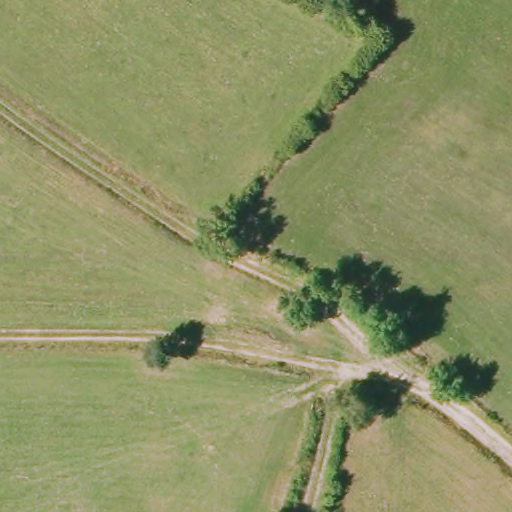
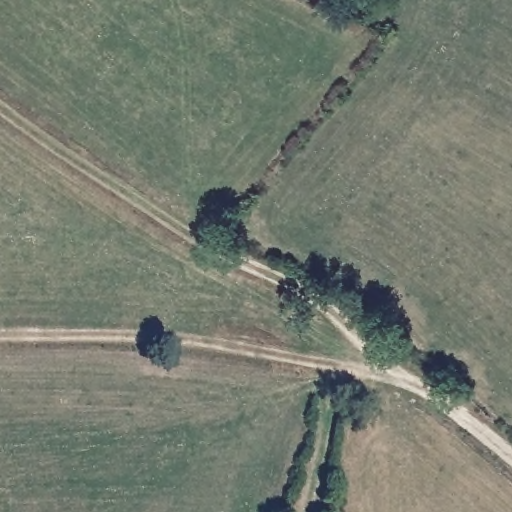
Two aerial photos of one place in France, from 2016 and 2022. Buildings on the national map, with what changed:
[]

